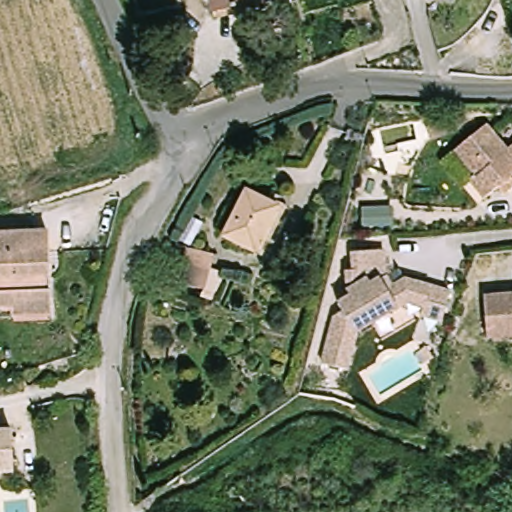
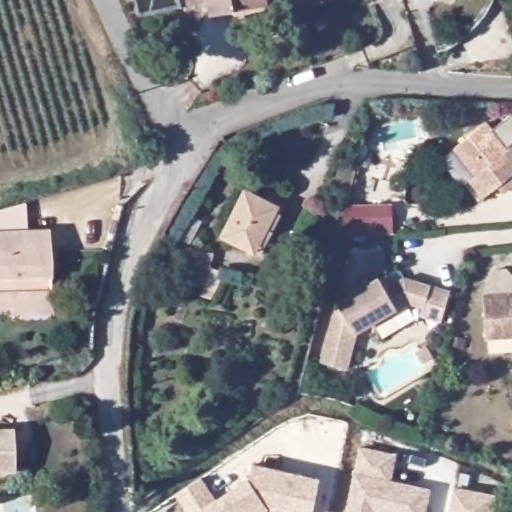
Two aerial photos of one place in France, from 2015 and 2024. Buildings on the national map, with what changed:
unchanged [(213,0),(271,0),(272,4),(216,14),(213,0)]
unchanged [(454,112),(457,125),(434,133),(430,121),(454,112)]
unchanged [(478,194),(464,177),(470,172),(448,145),(480,119),(501,144),(512,135),(512,175),(497,188),(492,182),(478,194)]
unchanged [(260,247),(228,233),(249,190),(280,205),(260,247)]
new [(393,204),(394,236),(340,240),(348,206),(393,204)]
unchanged [(20,316),(20,307),(0,308),(0,235),(52,233),(55,297),(55,314),(20,316)]
unchanged [(331,315),(340,309),(334,301),(347,293),(343,287),(343,267),(349,267),(349,249),(380,246),(381,274),(388,283),(400,275),(427,282),(421,302),(404,297),(353,328),(343,367),(320,361),(331,315)]
unchanged [(211,291),(189,285),(197,262),(218,268),(211,291)]
unchanged [(490,298),(512,297),(512,340),(494,341),(490,298)]
unchanged [(16,432),(17,474),(0,474),(0,432),(16,432)]
new [(432,488),(426,512),(345,512),(358,448),(397,455),(392,481),(432,488)]
new [(201,477),(217,501),(250,477),(253,463),(321,477),(313,512),(300,512),(269,506),(259,512),(189,512),(178,493),(201,477)]
new [(497,496),(494,512),(450,512),(455,488),(497,496)]

